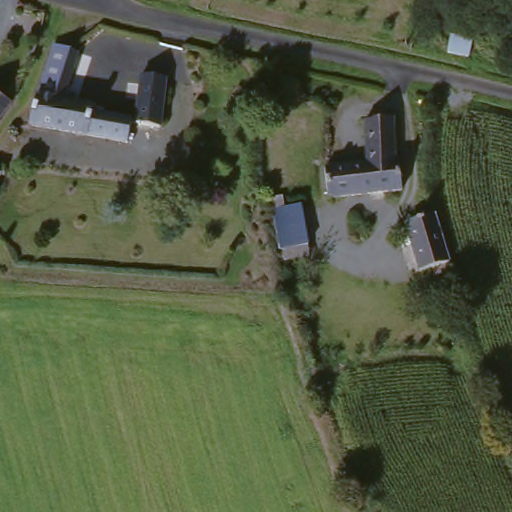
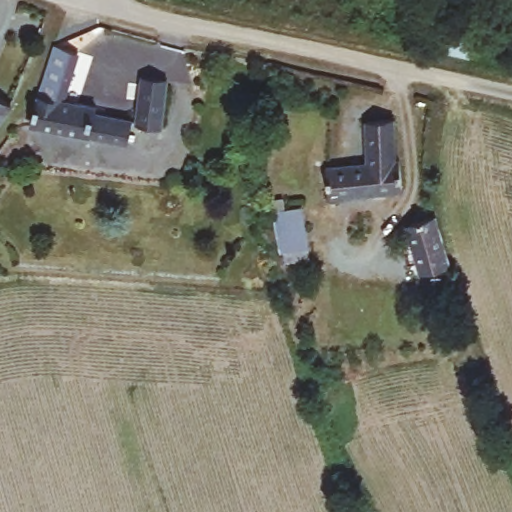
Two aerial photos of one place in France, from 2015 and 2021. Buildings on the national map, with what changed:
unchanged [(448,35),(470,39),(466,61),(444,57),(448,35)]
unchanged [(37,94),(49,48),(69,53),(58,102),(93,110),(92,119),(128,127),(123,146),(29,127),(37,94)]
unchanged [(163,79),(159,130),(133,129),(136,78),(163,79)]
unchanged [(0,118),(0,107),(6,110),(0,118)]
unchanged [(322,170),(363,167),(362,125),(389,124),(391,163),(398,162),(398,195),(323,201),(322,170)]
unchanged [(403,228),(433,221),(446,268),(438,269),(416,275),(403,228)]
unchanged [(296,222),(304,262),(281,267),(272,228),(296,222)]

